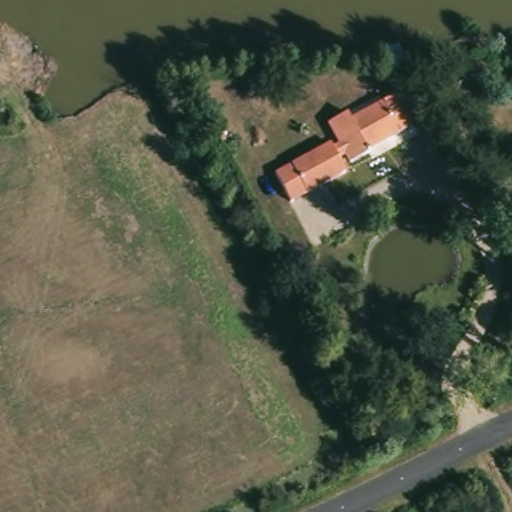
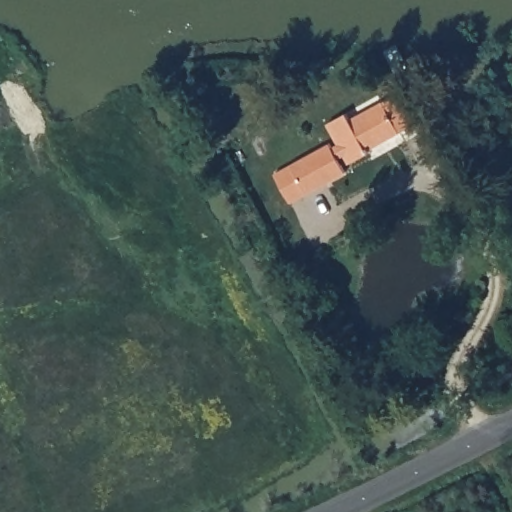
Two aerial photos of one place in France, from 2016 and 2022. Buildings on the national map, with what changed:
unchanged [(329,142),(332,149),(341,145),(330,124),(351,113),(355,120),(400,100),(417,131),(386,146),(382,140),(362,148),(366,156),(349,165),(345,158),(335,163),(342,176),(328,182),(313,150),(329,142)]
unchanged [(313,150),(328,182),(287,200),(272,170),(313,150)]

